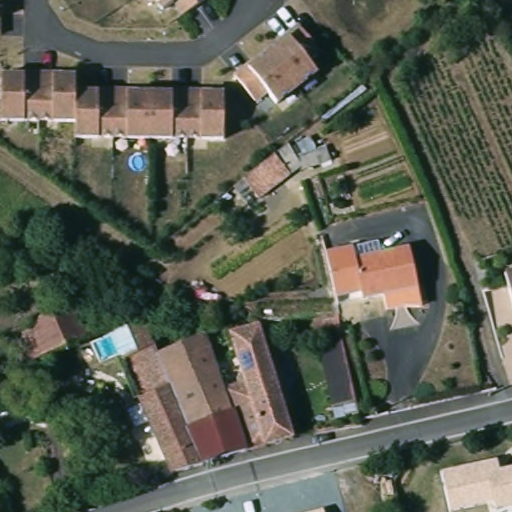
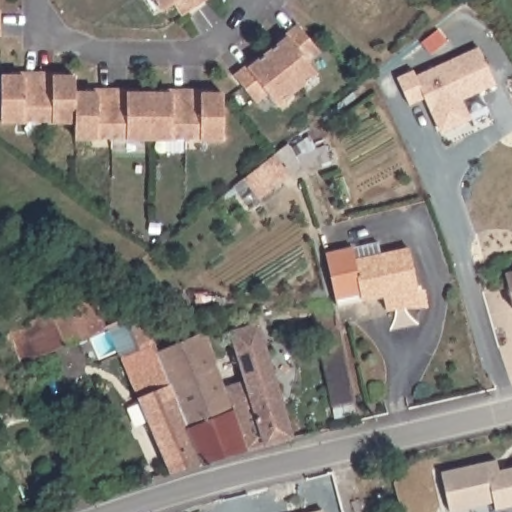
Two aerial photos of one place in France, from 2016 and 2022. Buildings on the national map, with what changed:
unchanged [(179,6),(175,1),(163,10),(157,0),(204,0),(184,14),(179,6)]
unchanged [(235,76),(247,66),(249,68),(289,35),(288,34),(299,24),(320,49),(308,59),(317,71),(277,103),(267,91),(256,101),(235,76)]
new [(415,65),(417,71),(480,43),(497,80),(464,95),(473,114),(442,128),(426,93),(411,100),(399,73),(415,65)]
unchanged [(75,137),(75,121),(65,121),(1,121),(1,76),(23,76),(23,73),(53,73),(54,76),(76,76),(76,92),(94,92),(98,92),(98,89),(128,89),(128,92),(172,93),(172,90),(202,90),(202,93),(224,93),(224,138),(75,137)]
unchanged [(331,146),(335,160),(312,166),(310,167),(306,153),(308,153),(331,146)]
unchanged [(296,168),(257,199),(248,187),(242,179),(281,149),(287,156),(296,168)]
unchanged [(348,302),(336,304),(326,254),(333,253),(353,249),(369,246),(370,256),(409,249),(416,289),(418,302),(420,309),(406,308),(384,311),(384,305),(382,296),(348,302)]
unchanged [(512,268),(512,288),(507,270),(512,268)]
unchanged [(31,320),(106,288),(118,319),(107,323),(109,328),(24,363),(11,335),(32,324),(31,320)]
unchanged [(314,313),(328,311),(331,311),(337,310),(339,316),(339,321),(340,329),(348,364),(349,369),(358,414),(335,417),(314,313)]
unchanged [(144,313),(160,354),(202,463),(170,473),(112,326),(144,313)]
unchanged [(233,408),(231,409),(225,389),(246,383),(231,329),(256,322),(259,322),(292,438),(245,451),(233,408)]
unchanged [(179,344),(207,329),(210,341),(225,389),(231,409),(233,408),(245,451),(202,463),(160,354),(179,344)]
unchanged [(8,397),(14,411),(0,417),(0,401),(8,397)]
unchanged [(491,501),(451,510),(441,474),(497,461),(499,470),(512,467),(512,506),(494,510),(491,501)]

